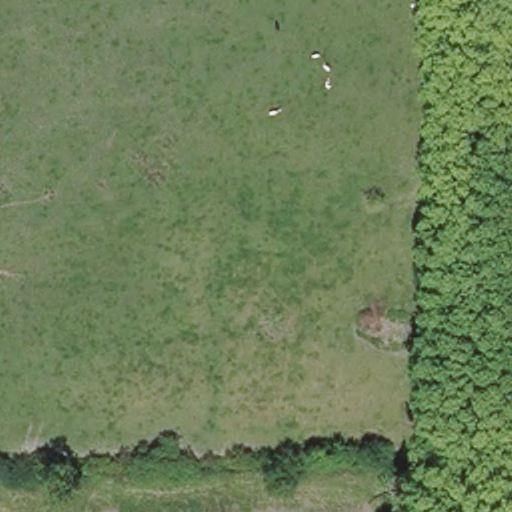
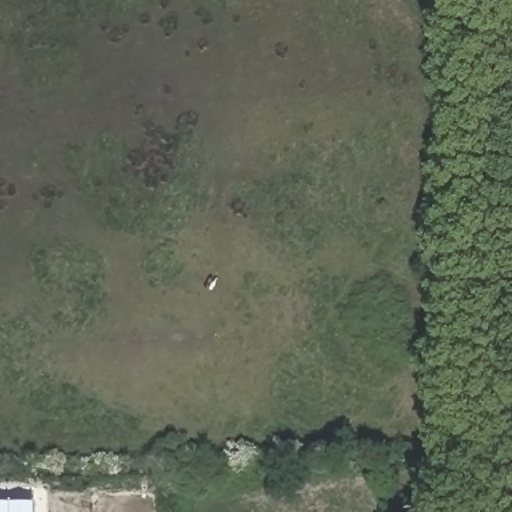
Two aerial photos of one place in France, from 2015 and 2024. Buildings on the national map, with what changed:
new [(34,503),(34,512),(0,512),(0,503),(34,503)]

